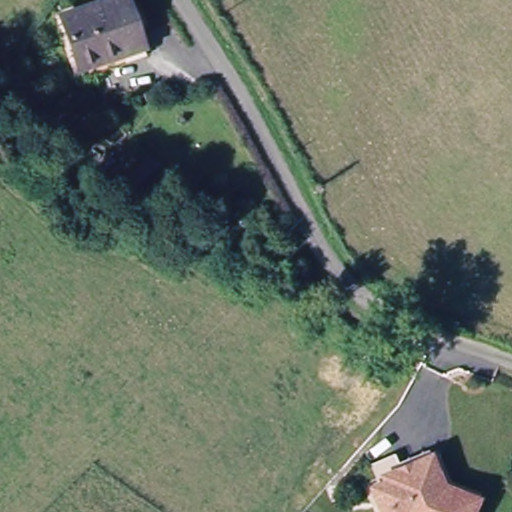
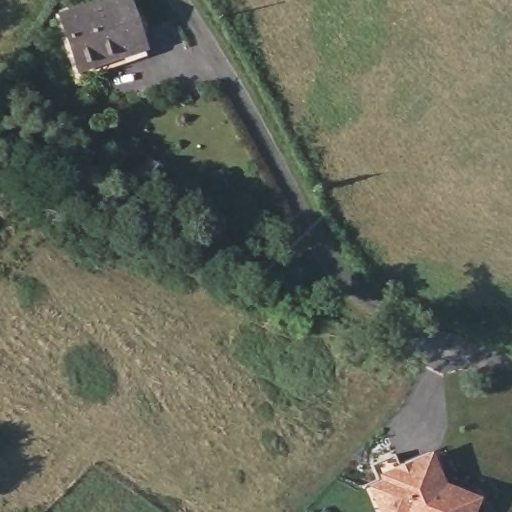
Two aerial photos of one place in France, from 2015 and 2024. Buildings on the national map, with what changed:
unchanged [(83,59),(66,7),(90,0),(134,0),(144,35),(102,45),(104,54),(83,59)]
unchanged [(149,54),(87,71),(83,59),(104,54),(102,45),(144,35),(149,54)]
unchanged [(162,190),(137,209),(121,188),(145,169),(162,190)]
unchanged [(445,485),(482,498),(477,512),(384,512),(381,505),(373,485),(387,480),(385,474),(426,457),(439,487),(445,485)]

